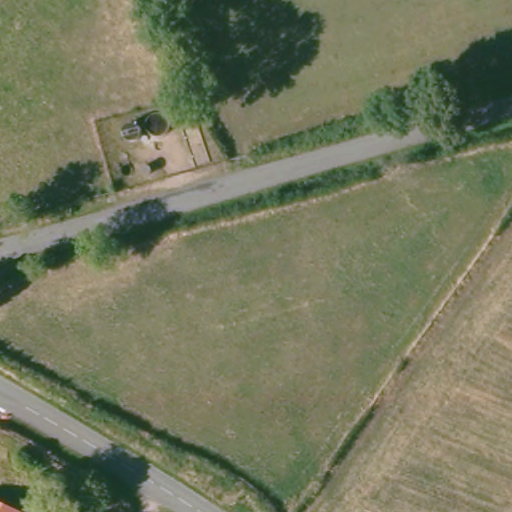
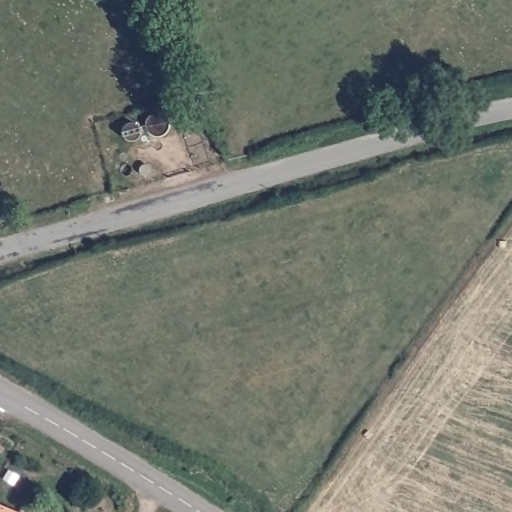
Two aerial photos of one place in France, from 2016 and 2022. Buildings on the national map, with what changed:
unchanged [(125,177),(120,175),(116,170),(119,165),(125,163),(130,167),(128,174),(125,177)]
unchanged [(21,512),(0,512),(0,504),(21,512)]

